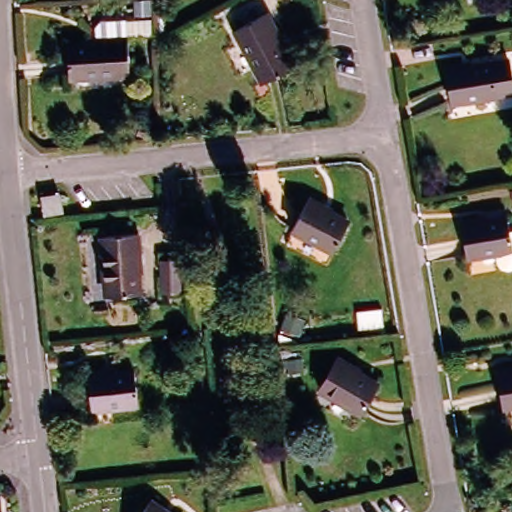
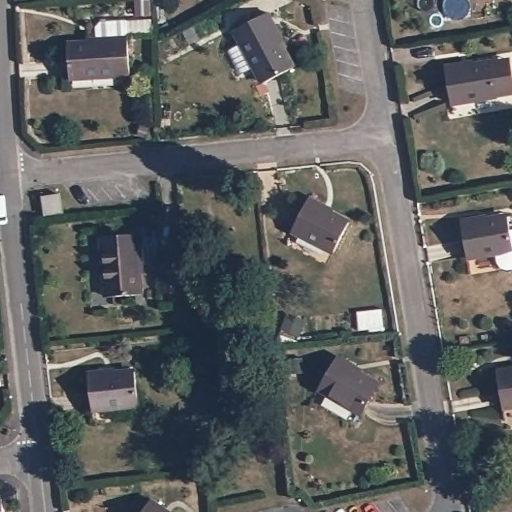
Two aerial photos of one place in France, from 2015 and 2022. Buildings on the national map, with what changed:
unchanged [(263,10),(276,38),(268,39),(281,70),(252,84),(229,26),(263,10)]
unchanged [(60,41),(120,38),(121,71),(60,74),(60,41)]
unchanged [(447,67),(469,63),(469,71),(496,66),(502,99),(454,108),(447,67)]
unchanged [(72,179),(74,194),(52,198),(49,183),(72,179)]
unchanged [(307,195),(319,204),(317,210),(340,224),(324,253),(287,232),(283,230),(302,194),(307,195)]
unchanged [(134,231),(136,264),(129,267),(130,291),(95,295),(91,235),(134,231)]
unchanged [(484,234),(485,244),(512,237),(512,272),(468,280),(462,239),(484,234)]
unchanged [(330,356),(342,362),(341,367),(367,382),(348,414),(307,391),(309,389),(329,355),(330,356)]
unchanged [(511,361),(512,368),(512,402),(496,405),(490,366),(511,361)]
unchanged [(97,368),(98,373),(128,370),(133,401),(84,407),(78,370),(97,368)]
unchanged [(138,499),(154,508),(151,512),(130,512),(138,499)]

